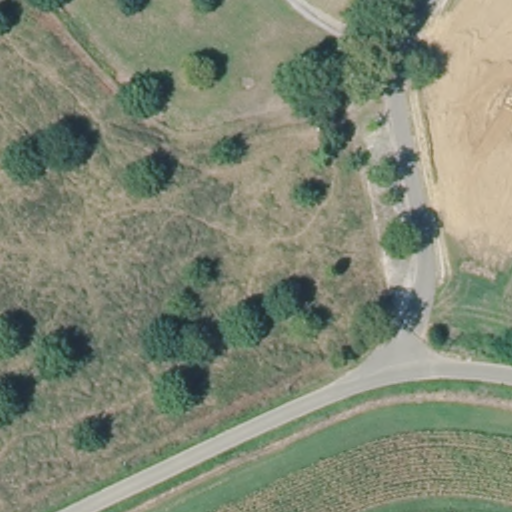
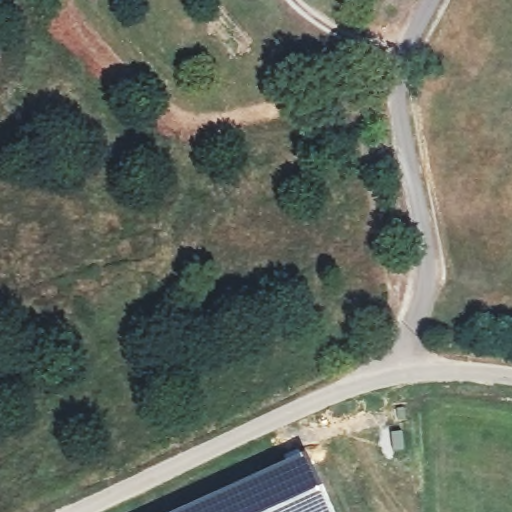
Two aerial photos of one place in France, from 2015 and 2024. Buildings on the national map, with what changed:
new [(303,455),(305,460),(320,490),(330,512),(177,512),(303,455)]

